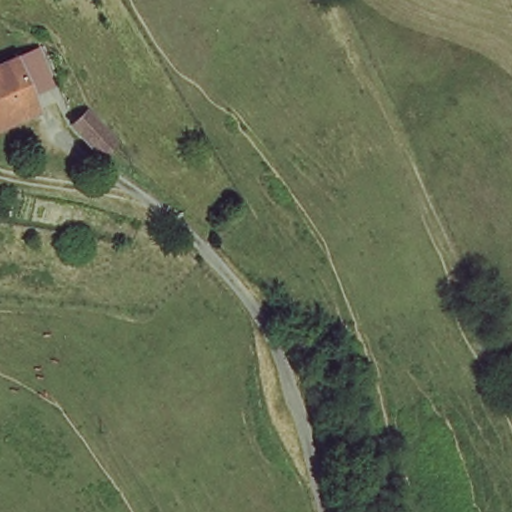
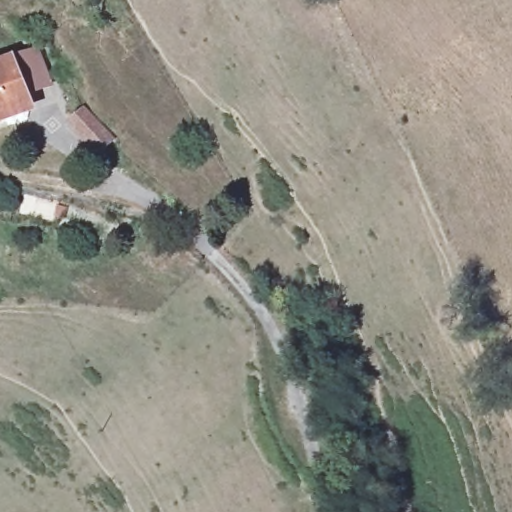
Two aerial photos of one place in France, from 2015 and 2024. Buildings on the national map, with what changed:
unchanged [(48,52),(60,82),(38,90),(43,104),(0,120),(0,73),(48,52)]
unchanged [(54,96),(75,82),(103,129),(81,144),(54,96)]
unchanged [(1,133),(0,133),(0,130),(1,133)]

